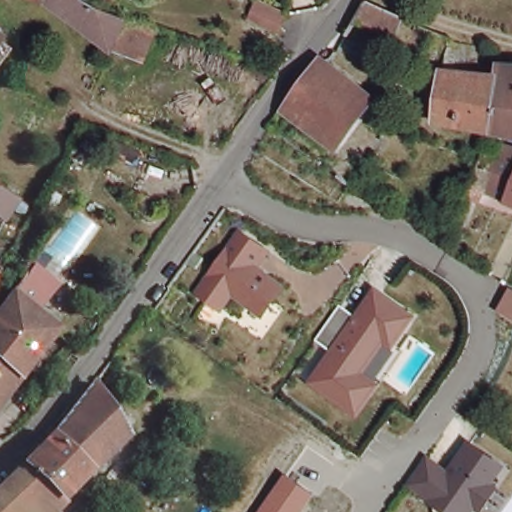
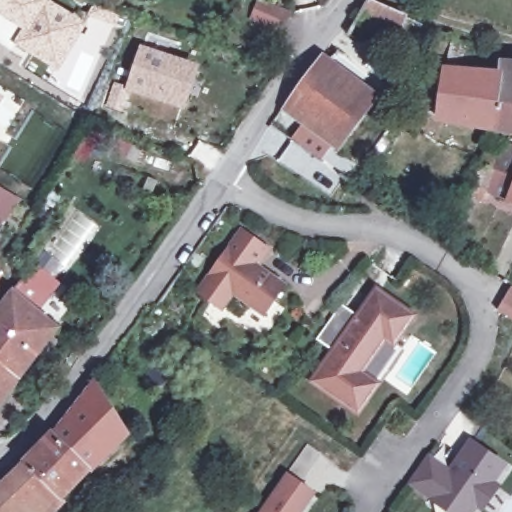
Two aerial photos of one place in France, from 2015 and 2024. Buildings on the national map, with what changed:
new [(52,0),(87,23),(58,71),(12,43),(20,30),(0,16),(0,0),(52,0)]
demolished [(99,10),(118,19),(152,31),(157,33),(144,66),(113,55),(73,23),(50,9),(38,0),(82,0),(85,1),(99,10)]
unchanged [(258,1),(287,14),(279,33),(250,20),(258,1)]
unchanged [(391,43),(352,24),(362,6),(388,16),(401,21),(391,43)]
unchanged [(423,124),(435,43),(440,44),(440,46),(462,50),(473,52),(472,55),(469,79),(488,80),(490,71),(512,72),(512,141),(480,135),(423,124)]
new [(200,66),(186,111),(125,91),(140,45),(200,66)]
unchanged [(374,97),(336,149),(282,110),(285,106),(321,58),(374,97)]
new [(5,96),(0,106),(0,92),(5,96)]
unchanged [(487,194),(473,188),(476,180),(485,153),(497,158),(502,144),(512,146),(512,202),(488,192),(487,194)]
unchanged [(350,172),(355,176),(348,185),(343,181),(350,172)]
new [(22,200),(7,221),(0,216),(0,186),(22,200)]
unchanged [(262,269),(238,302),(232,311),(200,288),(241,224),(274,252),(262,269)]
unchanged [(262,269),(287,286),(264,320),(238,302),(262,269)]
unchanged [(2,298),(3,299),(17,281),(19,278),(24,282),(30,275),(41,284),(35,291),(18,311),(46,333),(0,394),(0,300),(2,298)]
unchanged [(357,412),(350,406),(312,379),(333,350),(317,338),(328,323),(342,303),(358,315),(377,289),(385,295),(415,316),(395,344),(386,338),(362,372),(378,384),(357,412)]
unchanged [(502,309),(512,291),(512,315),(502,309)]
unchanged [(12,508),(7,512),(0,512),(0,477),(13,465),(22,456),(25,452),(52,427),(54,424),(73,402),(85,385),(93,373),(126,426),(112,440),(90,461),(63,490),(42,512),(38,509),(35,512),(17,512),(12,508)]
unchanged [(485,512),(484,512),(473,504),(466,512),(442,512),(405,486),(425,456),(445,469),(463,440),(503,464),(491,481),(499,487),(485,512)]
unchanged [(302,512),(258,512),(285,474),(315,494),(302,512)]

